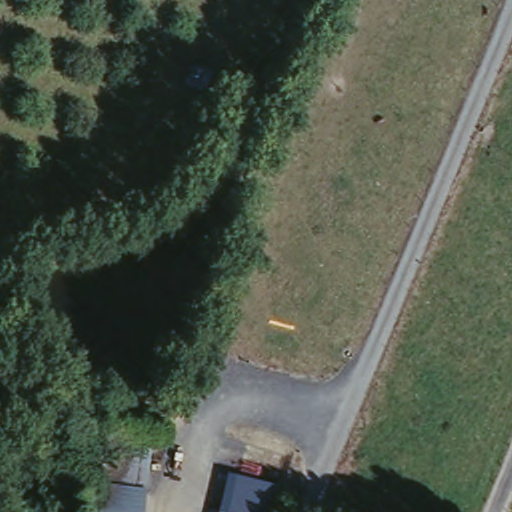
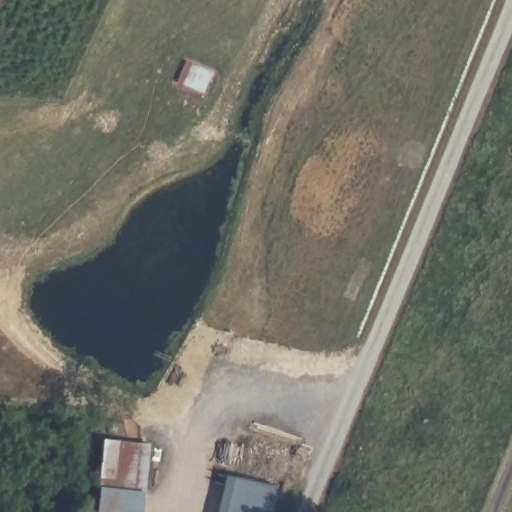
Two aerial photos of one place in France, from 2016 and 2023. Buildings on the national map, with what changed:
unchanged [(146,442),(141,512),(96,512),(102,438),(146,442)]
unchanged [(274,488),(268,512),(227,512),(233,478),(274,488)]

